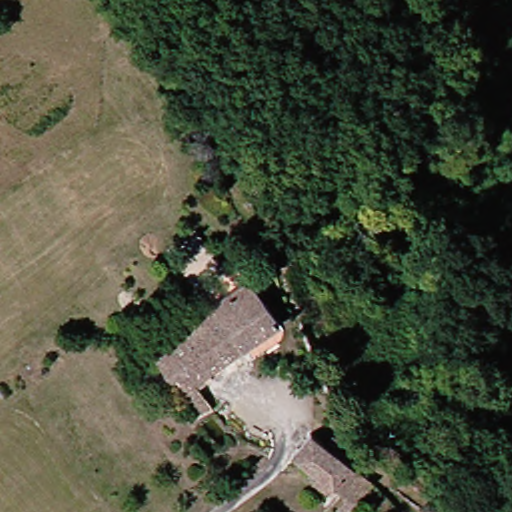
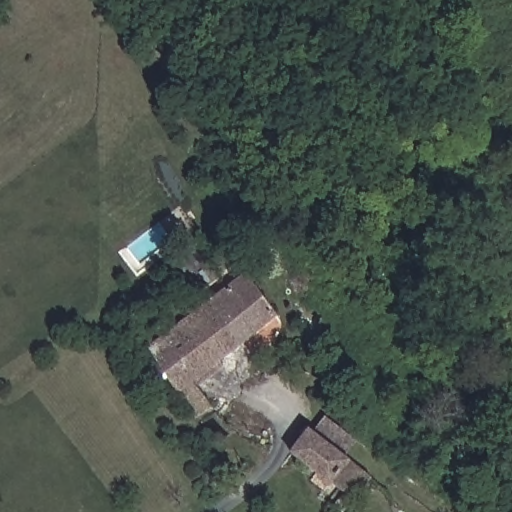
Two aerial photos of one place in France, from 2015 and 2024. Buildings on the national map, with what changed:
unchanged [(288,320),(203,379),(216,407),(201,419),(156,345),(256,271),(288,320)]
unchanged [(346,479),(327,463),(317,476),(304,463),(314,450),(296,435),(313,411),(363,454),(346,479)]

